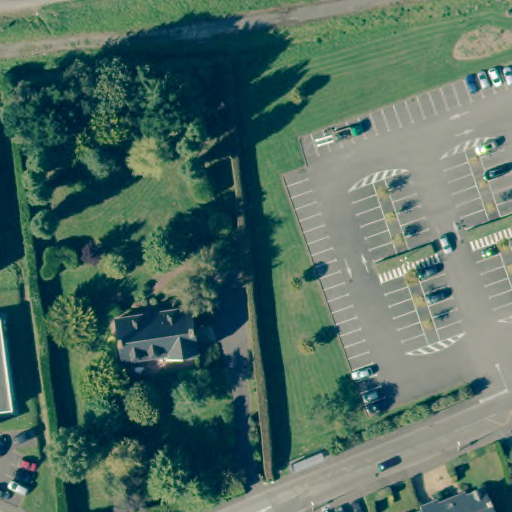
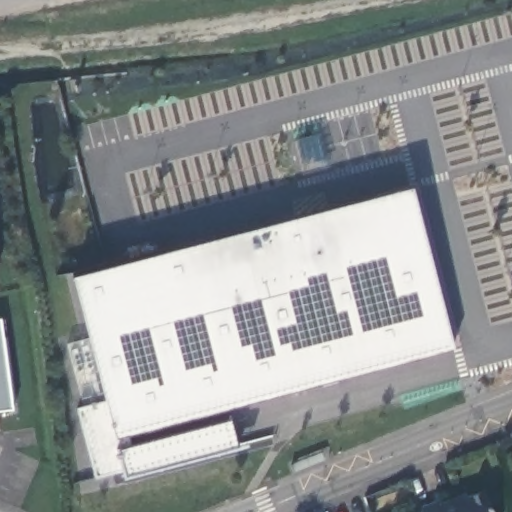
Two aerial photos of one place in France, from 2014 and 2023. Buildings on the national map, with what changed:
new [(128,435),(131,445),(231,420),(238,449),(125,480),(122,471),(95,480),(77,409),(105,401),(71,277),(410,185),(454,349),(128,435)]
demolished [(190,307),(199,355),(169,361),(168,358),(125,366),(117,320),(190,307)]
unchanged [(2,320),(14,411),(0,413),(0,320),(2,320)]
unchanged [(420,505),(435,498),(436,501),(453,495),(454,497),(482,487),(492,512),(411,512),(422,507),(420,505)]

